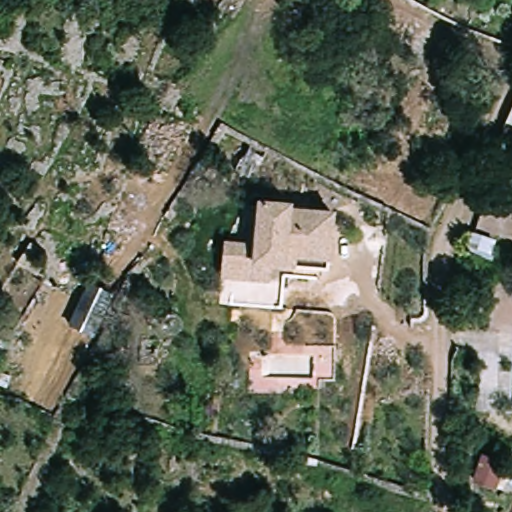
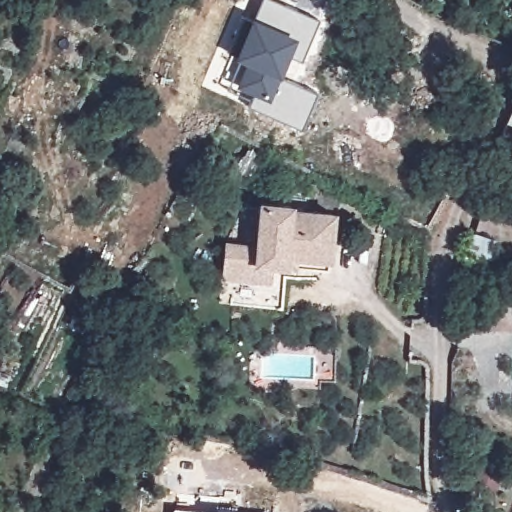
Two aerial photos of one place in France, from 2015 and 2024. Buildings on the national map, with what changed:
new [(239,57),(228,52),(242,16),(253,21),(262,0),(274,0),(320,20),(303,61),(286,54),(278,75),(317,92),(301,128),(249,106),(251,100),(228,90),(239,57)]
unchanged [(508,121),(512,112),(512,123),(508,121)]
unchanged [(223,274),(223,263),(225,241),(259,243),(261,197),(291,199),(291,206),(334,209),(331,262),(276,259),(274,276),(223,274)]
unchanged [(478,255),(484,238),(504,247),(499,264),(478,255)]

